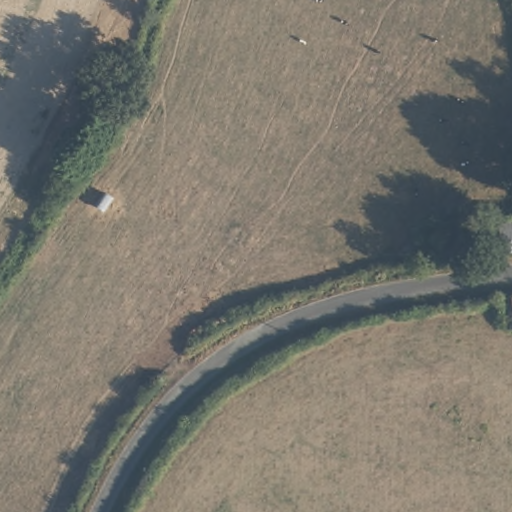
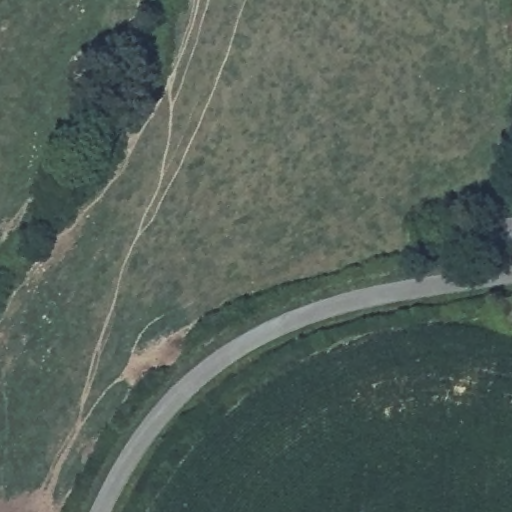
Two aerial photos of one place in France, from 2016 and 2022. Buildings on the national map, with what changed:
unchanged [(512,224),(512,247),(499,249),(496,226),(512,224)]
unchanged [(512,299),(512,326),(501,325),(499,300),(512,299)]

